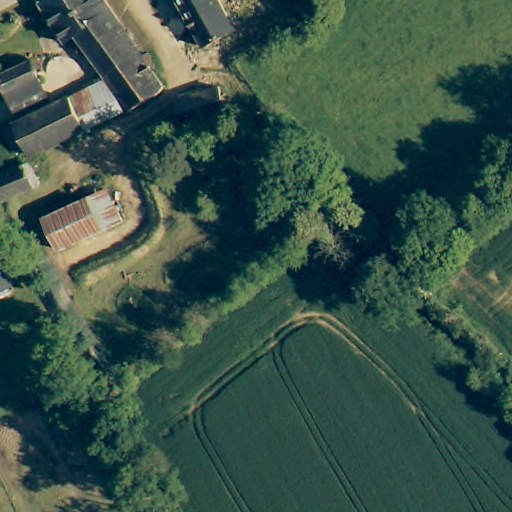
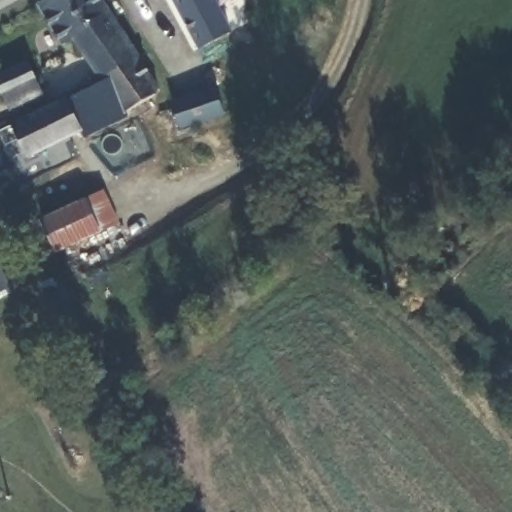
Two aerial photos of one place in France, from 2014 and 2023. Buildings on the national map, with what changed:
unchanged [(109,72),(94,49),(83,30),(78,32),(73,35),(65,24),(55,30),(43,8),(55,0),(109,0),(115,10),(127,30),(142,54),(116,68),(109,72)]
unchanged [(217,42),(209,30),(199,35),(192,25),(189,20),(177,0),(219,0),(229,18),(235,31),(217,42)]
unchanged [(163,89),(131,109),(128,104),(109,72),(116,68),(142,54),(163,89)]
unchanged [(19,112),(18,110),(16,111),(8,89),(13,86),(9,82),(1,83),(0,83),(0,68),(0,67),(1,67),(3,67),(4,67),(5,68),(6,68),(37,55),(54,95),(19,112)]
unchanged [(128,104),(90,125),(74,90),(97,79),(98,78),(109,72),(128,104)]
unchanged [(207,109),(165,122),(156,99),(199,85),(207,109)]
unchanged [(9,122),(21,117),(74,90),(90,125),(36,150),(31,140),(20,145),(9,122)]
unchanged [(6,196),(0,198),(0,186),(3,185),(5,192),(6,196)]
unchanged [(120,223),(60,251),(46,219),(106,191),(120,223)]

